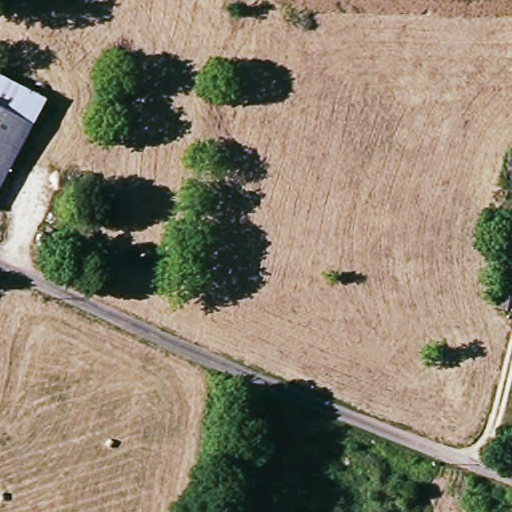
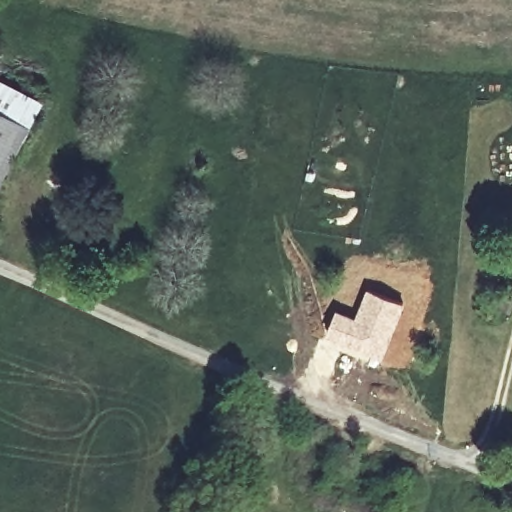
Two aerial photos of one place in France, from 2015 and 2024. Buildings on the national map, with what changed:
unchanged [(27,109),(0,96),(0,73),(37,88),(27,109)]
unchanged [(0,96),(27,109),(0,179),(0,96)]
unchanged [(512,155),(512,185),(505,185),(502,154),(512,155)]
unchanged [(512,286),(507,309),(492,307),(497,284),(512,286)]
new [(336,307),(354,314),(367,286),(405,302),(381,359),(325,336),(336,307)]
unchanged [(233,495),(247,495),(246,512),(232,512),(233,495)]

